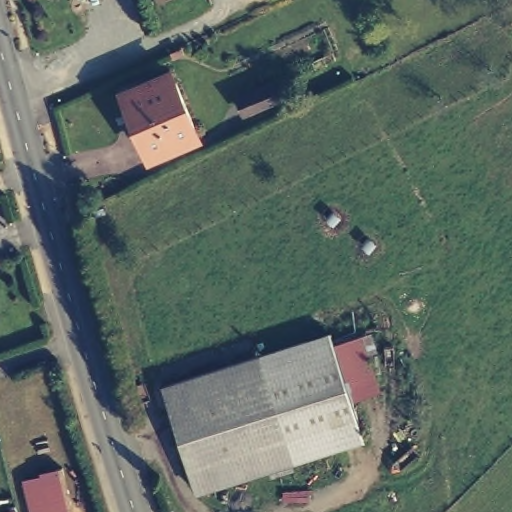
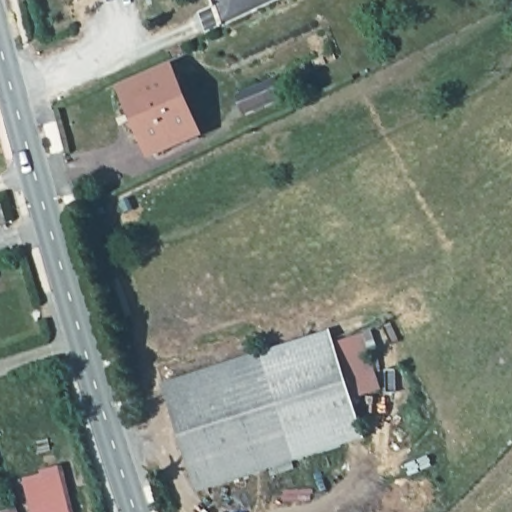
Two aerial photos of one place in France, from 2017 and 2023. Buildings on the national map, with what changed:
unchanged [(171,68),(201,132),(155,153),(126,87),(171,68)]
unchanged [(278,82),(287,99),(250,114),(242,98),(278,82)]
unchanged [(328,332),(368,439),(195,491),(160,380),(328,332)]
unchanged [(30,493),(60,485),(70,483),(71,490),(67,491),(73,512),(35,512),(32,502),(30,493)]
unchanged [(14,512),(25,510),(25,512),(14,512)]

